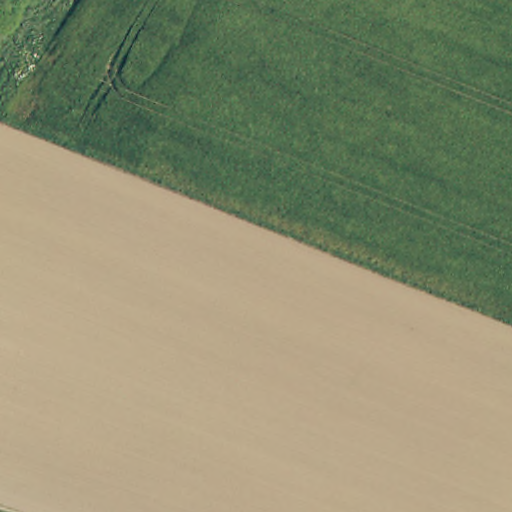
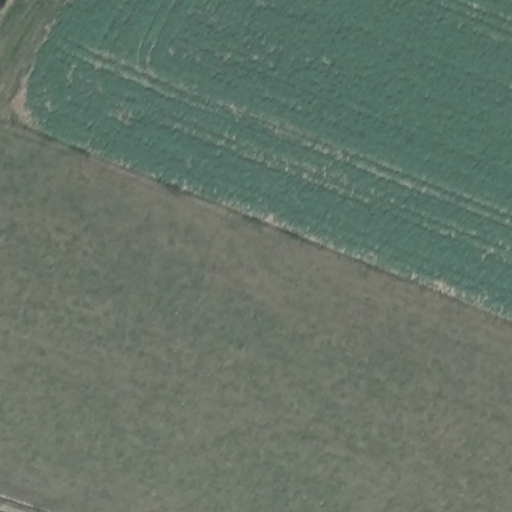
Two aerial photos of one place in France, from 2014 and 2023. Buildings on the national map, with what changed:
[]

